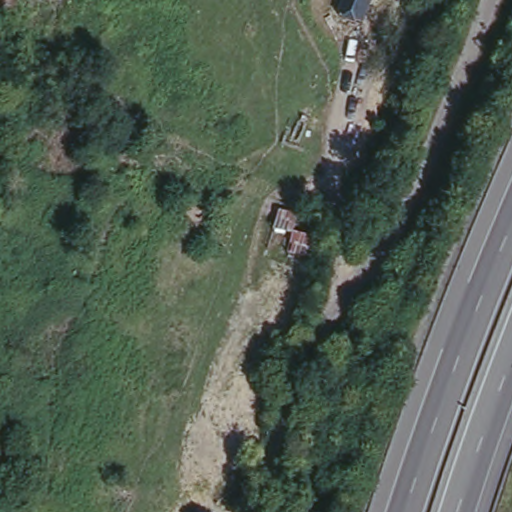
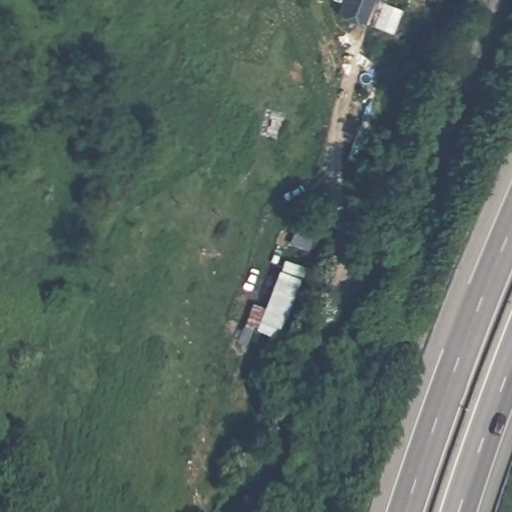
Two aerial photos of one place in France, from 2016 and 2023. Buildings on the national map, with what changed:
unchanged [(366,32),(345,25),(349,12),(341,10),(345,0),(377,0),(366,32)]
unchanged [(317,215),(295,209),(301,177),(325,182),(317,215)]
new [(275,338),(252,330),(280,258),(302,268),(275,338)]
unchanged [(251,512),(222,512),(227,498),(252,507),(251,512)]

